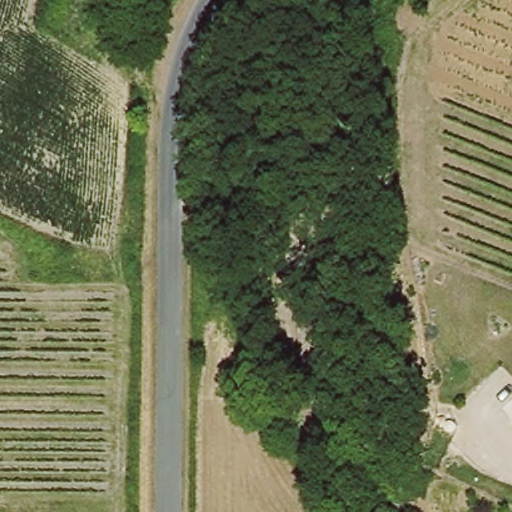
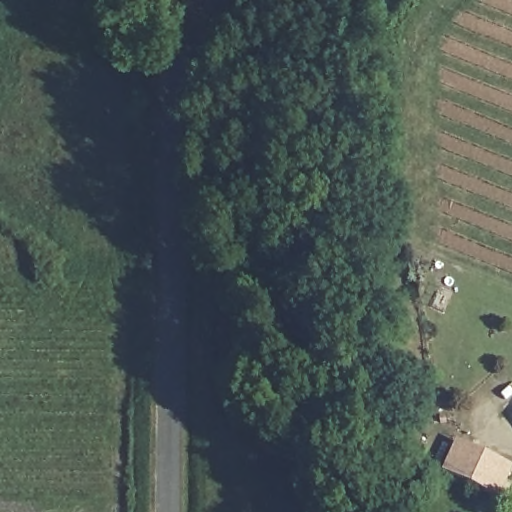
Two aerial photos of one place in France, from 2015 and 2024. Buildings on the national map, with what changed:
new [(454,442),(512,467),(499,498),(440,474),(454,442)]

